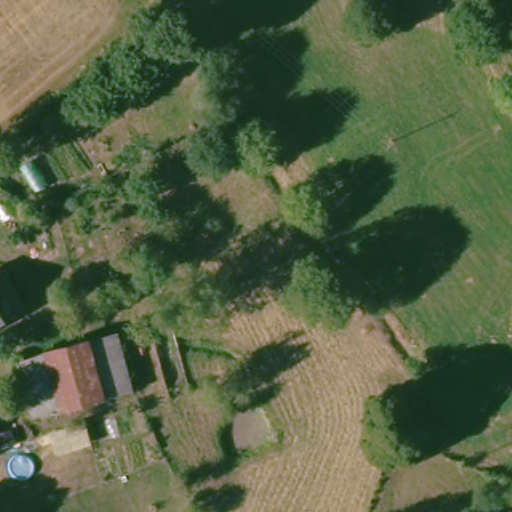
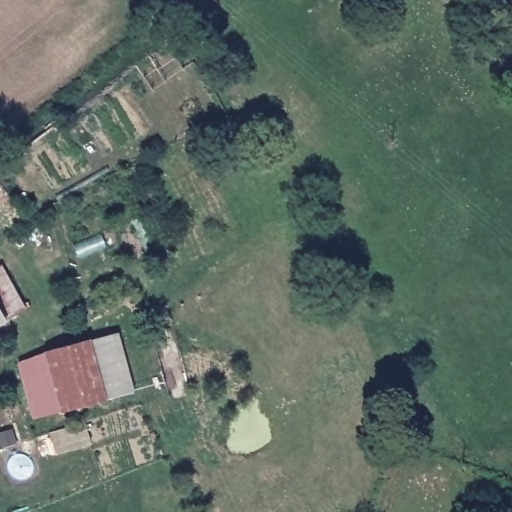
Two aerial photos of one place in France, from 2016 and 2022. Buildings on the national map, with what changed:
unchanged [(7,267),(29,311),(12,320),(0,326),(0,271),(7,267)]
unchanged [(88,345),(114,330),(140,383),(112,397),(88,345)]
unchanged [(112,397),(77,415),(48,428),(24,379),(52,363),(88,345),(112,397)]
unchanged [(407,402),(415,413),(412,415),(408,432),(394,410),(407,402)]

